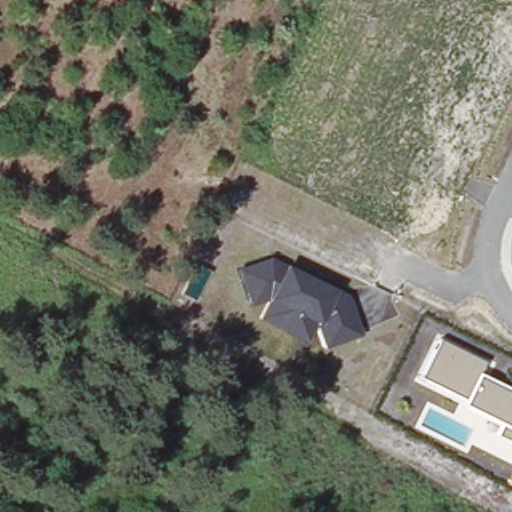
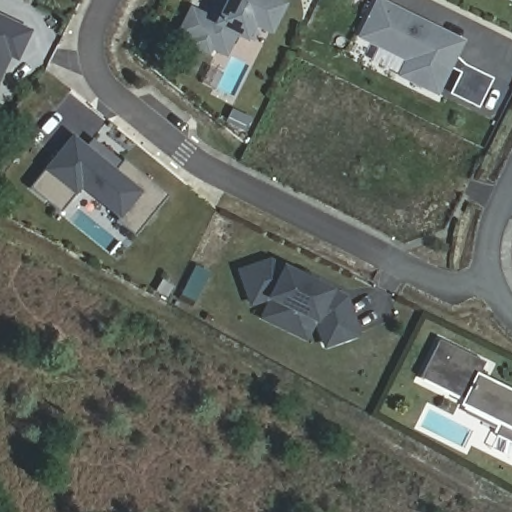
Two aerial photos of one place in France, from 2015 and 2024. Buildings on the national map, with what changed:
new [(236,32),(226,52),(211,45),(209,50),(193,43),(196,38),(181,31),(192,9),(208,18),(212,11),(217,0),(275,0),(275,1),(282,5),(269,30),(252,22),(246,37),(236,32)]
new [(402,76),(409,60),(377,45),(362,38),(367,26),(379,1),(438,31),(462,43),(452,62),(437,93),(402,76)]
new [(29,31),(16,58),(9,55),(6,61),(0,73),(0,17),(29,31)]
new [(230,112),(248,121),(243,131),(225,123),(230,112)]
new [(167,194),(134,235),(116,220),(119,217),(81,186),(60,211),(29,186),(72,134),(86,145),(90,140),(105,153),(102,157),(115,168),(124,158),(167,194)]
unchanged [(362,335),(326,349),(316,326),(308,342),(260,319),(268,301),(252,308),(238,269),(271,257),(286,264),(337,289),(350,296),(362,335)]
new [(182,293),(189,280),(197,264),(210,271),(202,287),(196,300),(182,293)]
unchanged [(502,424),(463,404),(465,401),(422,378),(442,340),(486,362),(483,375),(512,389),(512,441),(497,434),(502,424)]

